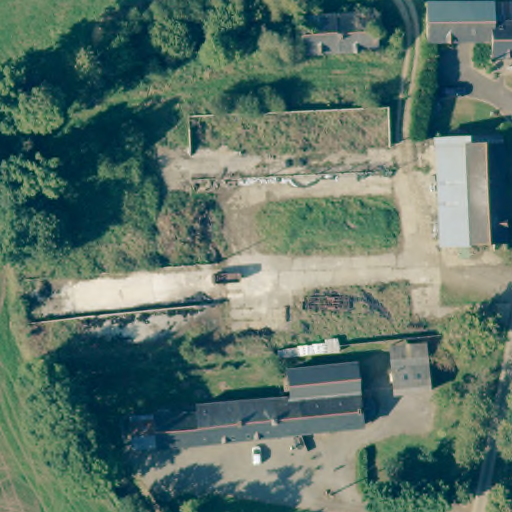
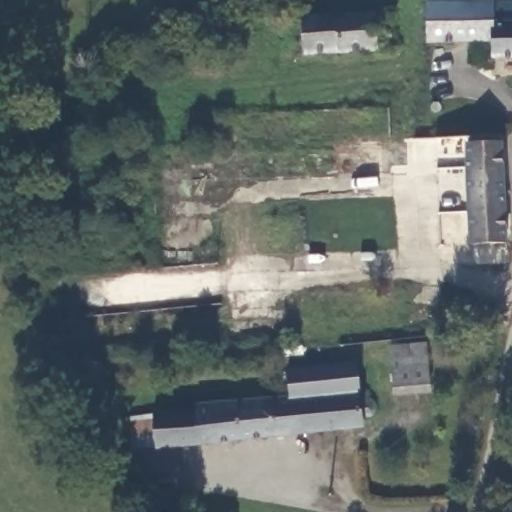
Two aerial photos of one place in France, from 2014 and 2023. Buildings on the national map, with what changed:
unchanged [(499,53),(499,36),(434,36),(433,0),(512,0),(512,52),(499,53)]
unchanged [(292,58),(290,41),(310,40),(309,15),(323,14),(340,13),(382,10),(383,25),(402,23),(403,36),(384,37),(384,46),(312,51),(312,57),(292,58)]
unchanged [(433,172),(430,142),(447,142),(461,142),(498,139),(504,244),(438,249),(433,172)]
unchanged [(404,395),(400,360),(399,350),(399,347),(433,342),(434,348),(434,357),(439,391),(404,395)]
unchanged [(298,431),(293,395),(290,369),(360,360),(364,399),(374,400),(378,407),(374,412),(366,413),(367,423),(312,429),(298,431)]
unchanged [(134,423),(158,421),(157,416),(199,411),(198,405),(253,399),(293,395),(298,431),(225,439),(181,445),(162,447),(139,449),(134,423)]

